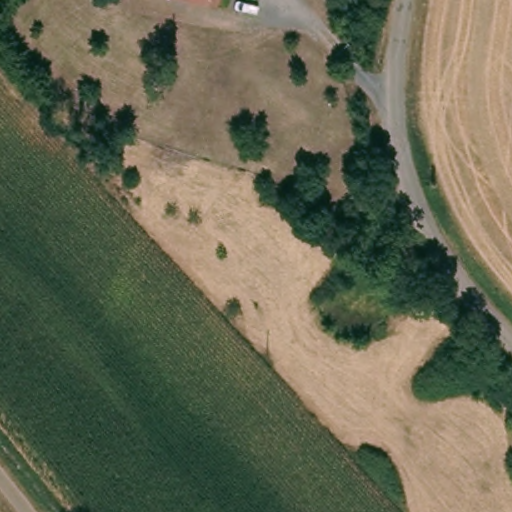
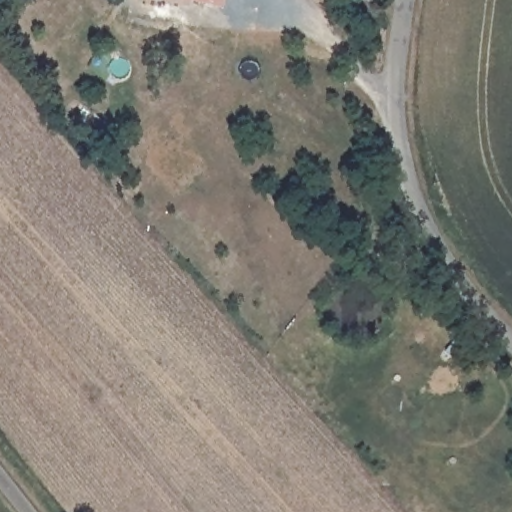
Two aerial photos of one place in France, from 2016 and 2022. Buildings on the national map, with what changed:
unchanged [(187,0),(223,0),(220,9),(187,0)]
unchanged [(339,8),(341,0),(367,0),(364,14),(339,8)]

